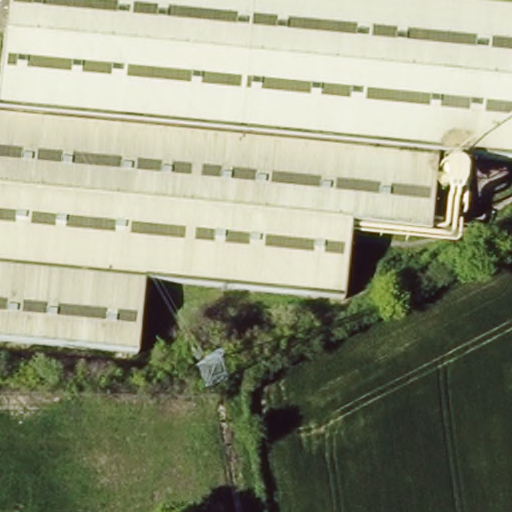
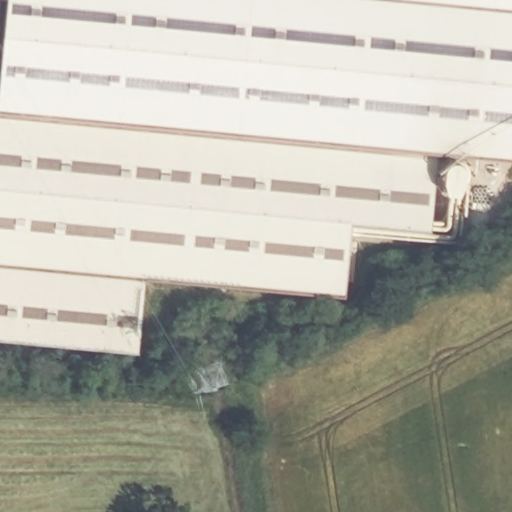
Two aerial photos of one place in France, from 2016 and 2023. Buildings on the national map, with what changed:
unchanged [(512,160),(451,155),(0,115),(0,75),(6,0),(512,0),(512,160)]
unchanged [(451,155),(445,224),(363,220),(358,294),(152,280),(147,350),(0,335),(0,115),(451,155)]

